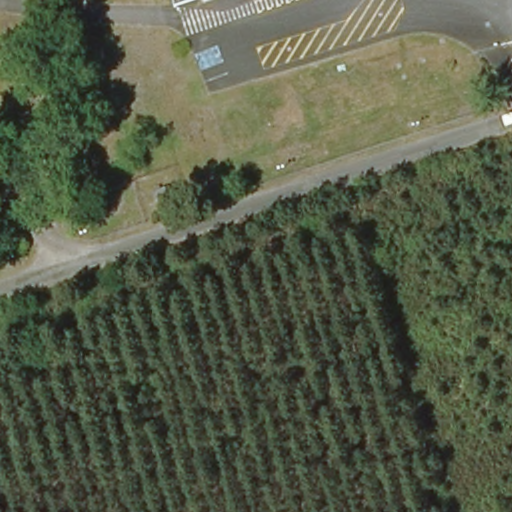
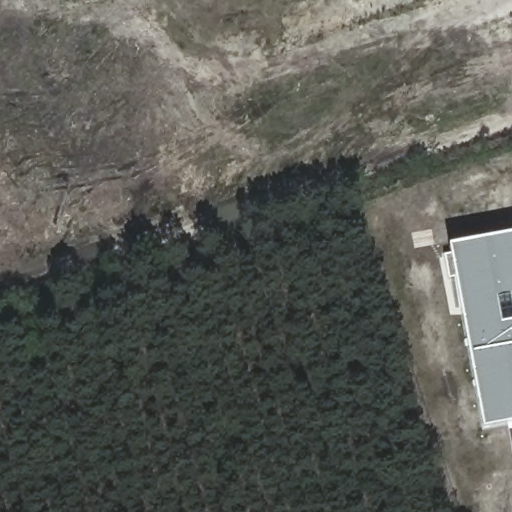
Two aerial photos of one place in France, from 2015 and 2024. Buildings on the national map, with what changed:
demolished [(170,0),(189,0),(172,5),(170,0)]
new [(450,247),(512,235),(512,424),(484,429),(450,247)]

